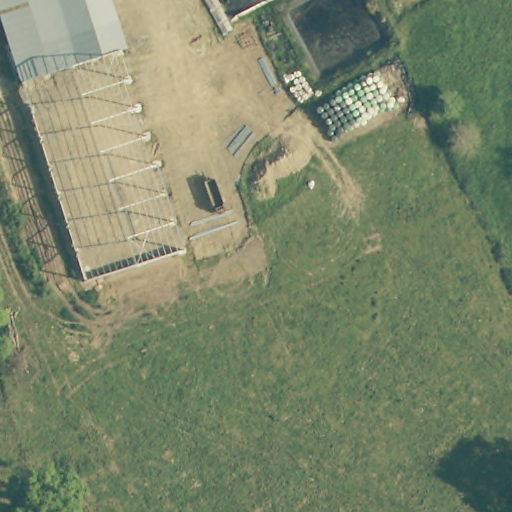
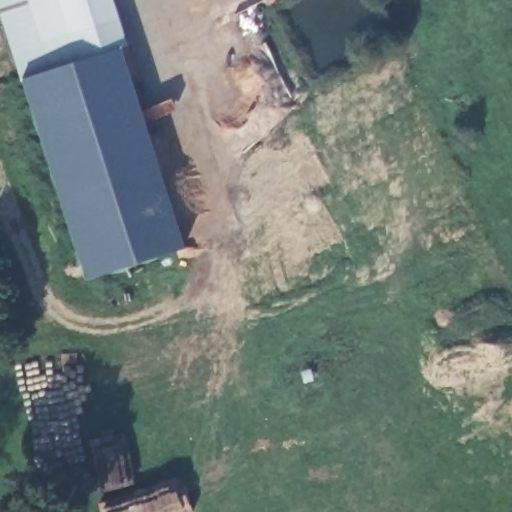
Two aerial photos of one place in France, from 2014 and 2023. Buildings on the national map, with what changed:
unchanged [(123,43),(93,54),(20,80),(0,24),(0,0),(108,0),(122,40),(123,43)]
new [(20,80),(93,54),(119,45),(183,249),(86,281),(20,80)]

